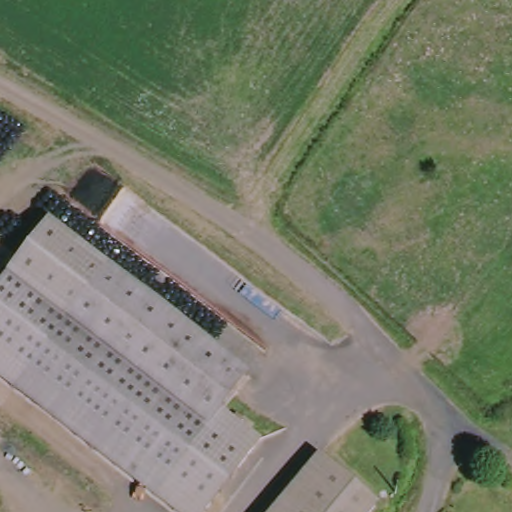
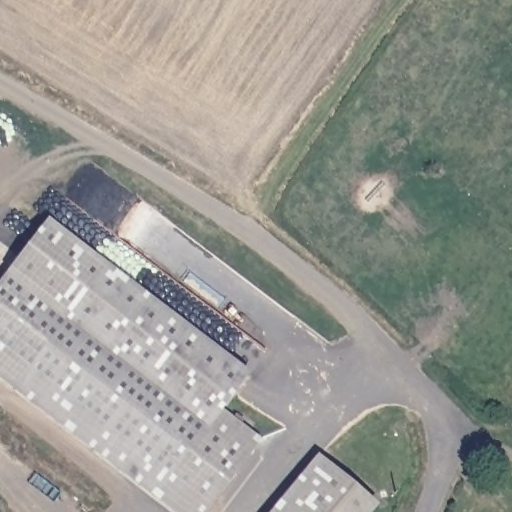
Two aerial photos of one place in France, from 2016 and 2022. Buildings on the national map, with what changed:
unchanged [(163,512),(0,383),(0,276),(43,222),(239,377),(213,413),(252,444),(197,512),(163,512)]
unchanged [(365,512),(271,512),(314,463),(365,512)]

